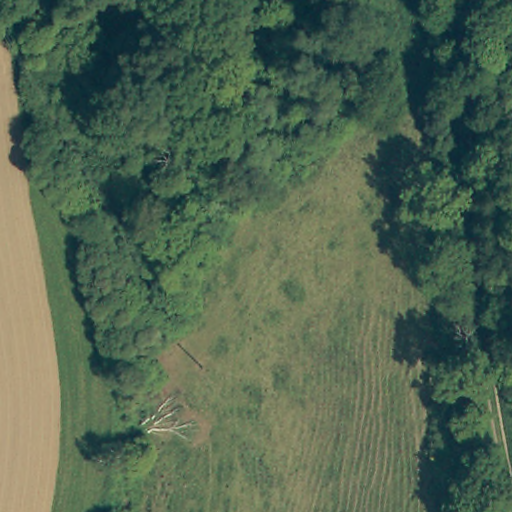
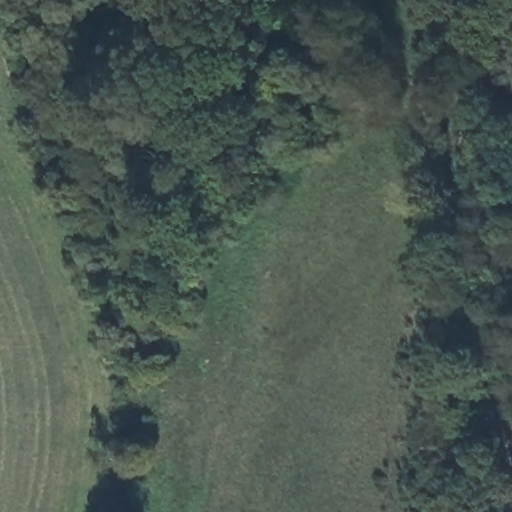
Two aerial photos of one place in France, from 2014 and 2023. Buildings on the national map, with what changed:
[]

